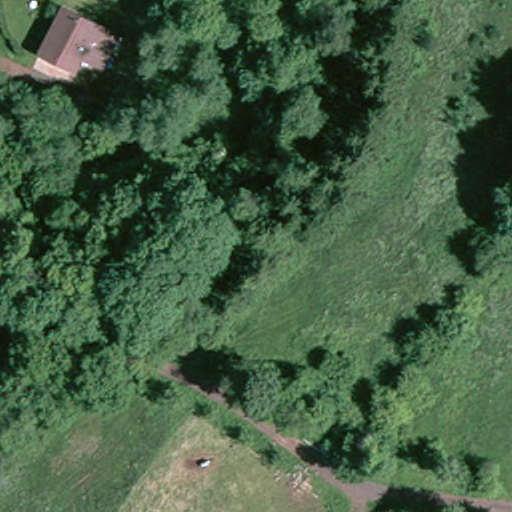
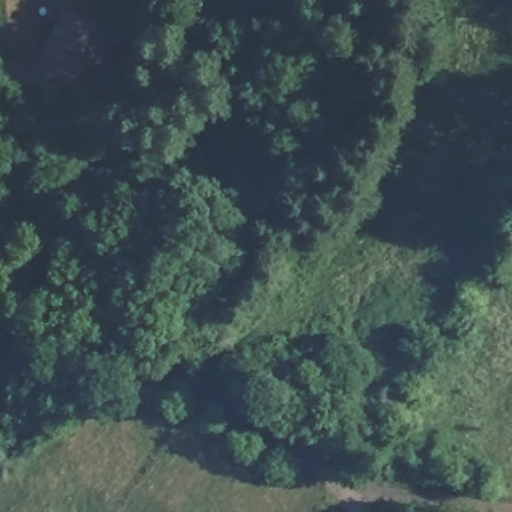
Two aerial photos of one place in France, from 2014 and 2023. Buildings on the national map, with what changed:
unchanged [(84,60),(78,71),(44,54),(65,11),(121,37),(105,70),(84,60)]

